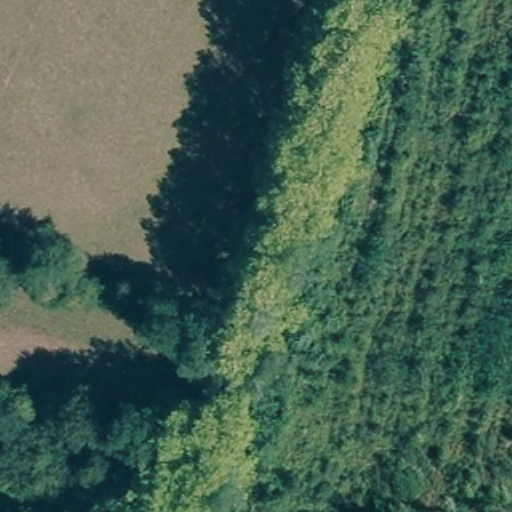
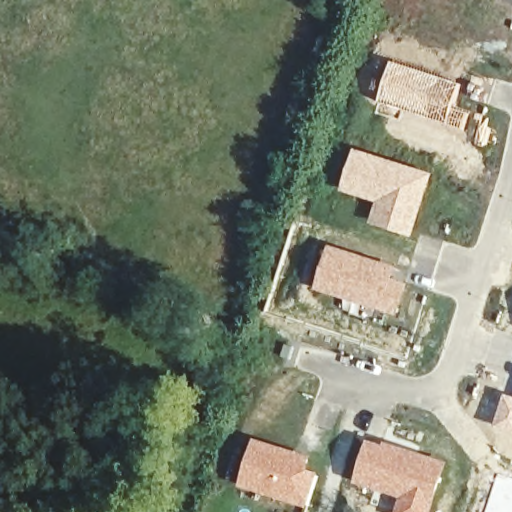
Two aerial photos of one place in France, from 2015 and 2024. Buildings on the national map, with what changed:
new [(353,148),(432,174),(411,239),(368,224),(375,203),(339,191),(353,148)]
new [(328,244),(396,267),(394,274),(407,280),(396,317),(365,308),(361,316),(341,310),(345,300),(313,290),(328,244)]
new [(503,393),(512,395),(512,434),(492,430),(503,393)]
new [(492,430),(512,434),(512,459),(504,456),(490,444),(492,430)]
new [(252,438),(310,456),(307,468),(318,472),(306,509),(236,486),(252,438)]
new [(366,439),(448,461),(432,512),(394,512),(398,499),(352,483),(366,439)]

